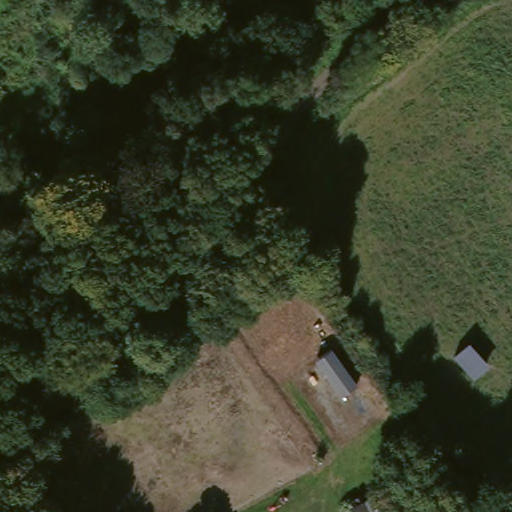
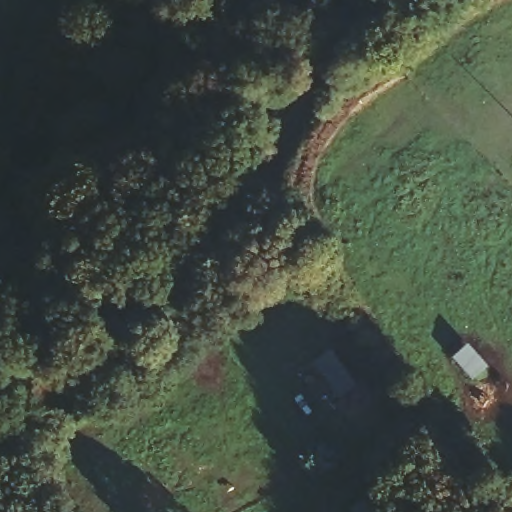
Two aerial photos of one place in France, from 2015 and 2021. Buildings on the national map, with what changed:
unchanged [(384,487),(397,512),(351,512),(346,503),(384,487)]

